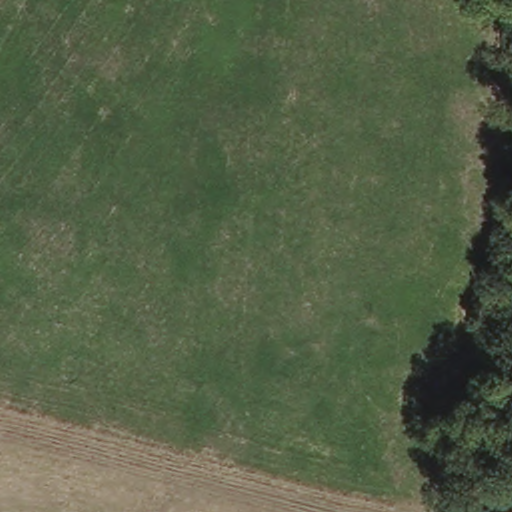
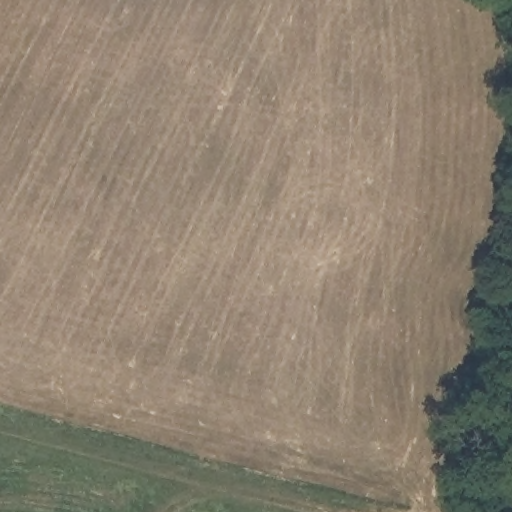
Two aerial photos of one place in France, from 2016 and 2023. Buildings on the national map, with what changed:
[]

